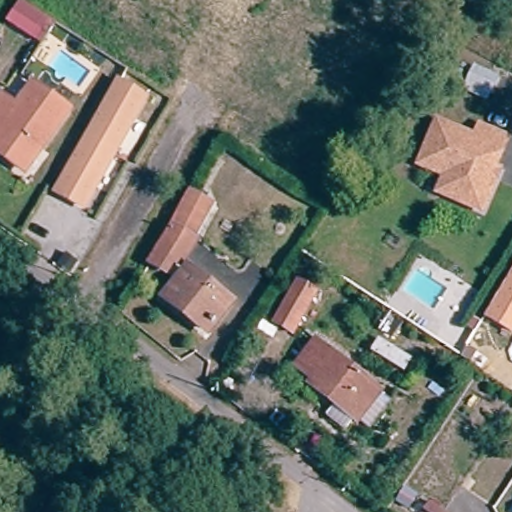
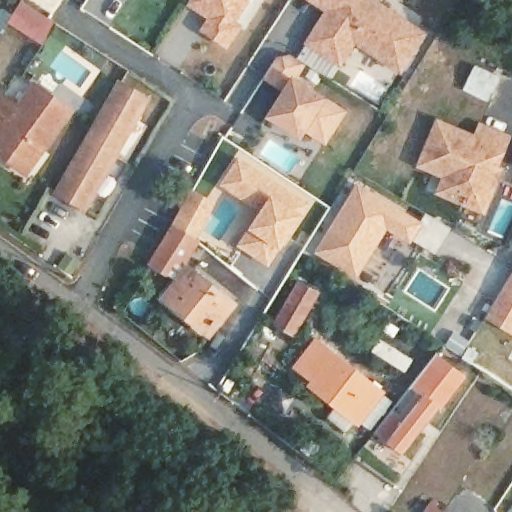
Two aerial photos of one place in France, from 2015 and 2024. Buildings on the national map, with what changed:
new [(188,0),(241,0),(231,17),(237,21),(226,40),(202,26),(210,13),(188,0)]
new [(321,0),(383,0),(423,25),(400,62),(353,34),(347,44),(339,57),(306,36),(311,29),(327,4),(321,0)]
unchanged [(19,2),(30,8),(56,24),(49,35),(39,29),(32,39),(6,21),(19,2)]
new [(290,48),(304,56),(294,72),(346,104),(327,134),(306,121),(302,129),(270,110),(282,90),(286,84),(264,71),(276,51),(290,48)]
unchanged [(499,76),(487,101),(462,89),(474,65),(499,76)]
unchanged [(115,82),(142,97),(83,207),(55,192),(115,82)]
unchanged [(0,110),(11,115),(24,92),(61,111),(28,172),(0,157),(0,110)]
unchanged [(465,210),(438,197),(446,181),(420,169),(440,128),(478,146),(484,135),(509,146),(502,160),(496,173),(501,176),(497,185),(489,201),(481,218),(465,210)]
new [(240,150),(280,178),(255,212),(216,186),(240,150)]
new [(255,212),(280,178),(314,200),(268,268),(233,246),(255,212)]
new [(420,220),(426,210),(452,227),(438,251),(415,238),(411,242),(388,229),(358,277),(315,252),(359,181),(420,220)]
unchanged [(166,263),(155,258),(190,197),(194,190),(212,198),(195,228),(180,255),(173,252),(166,263)]
unchanged [(169,290),(189,261),(233,293),(214,322),(169,290)]
unchanged [(484,317),(512,270),(512,334),(484,317)]
unchanged [(270,322),(297,280),(318,292),(291,335),(270,322)]
unchanged [(369,433),(358,425),(311,390),(316,383),(298,370),(315,346),(381,395),(392,403),(369,433)]
unchanged [(438,512),(424,512),(428,506),(438,512)]

